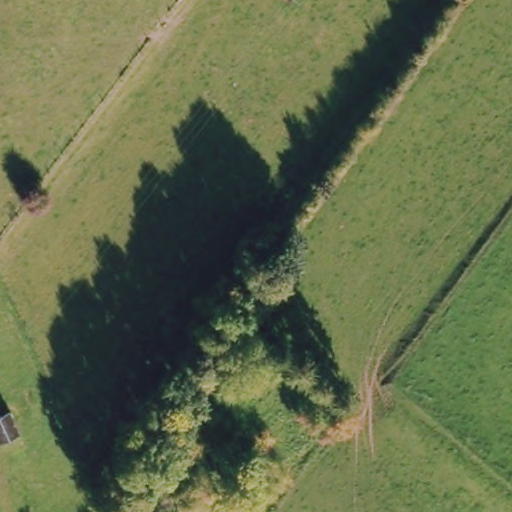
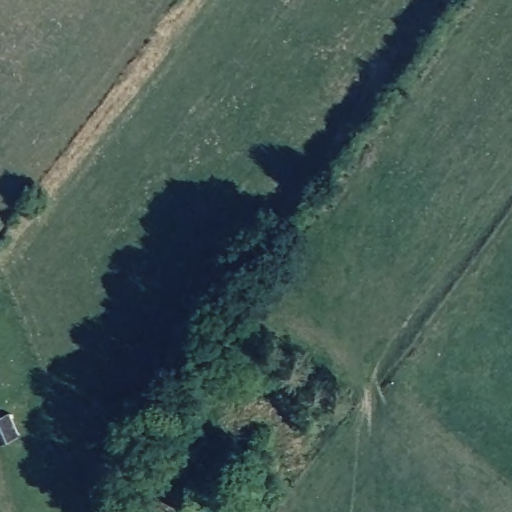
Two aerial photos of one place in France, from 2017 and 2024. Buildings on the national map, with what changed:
unchanged [(14,442),(0,448),(0,421),(5,419),(14,442)]

